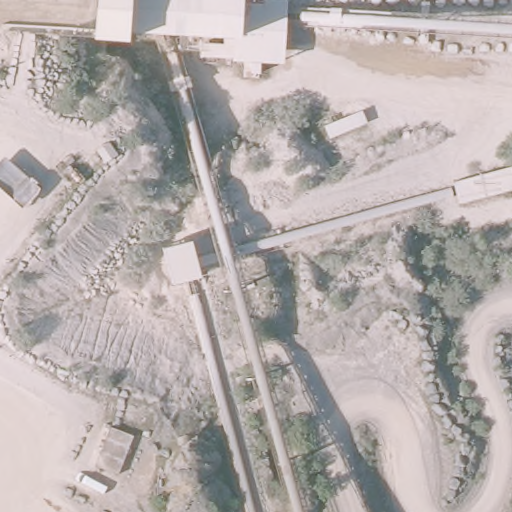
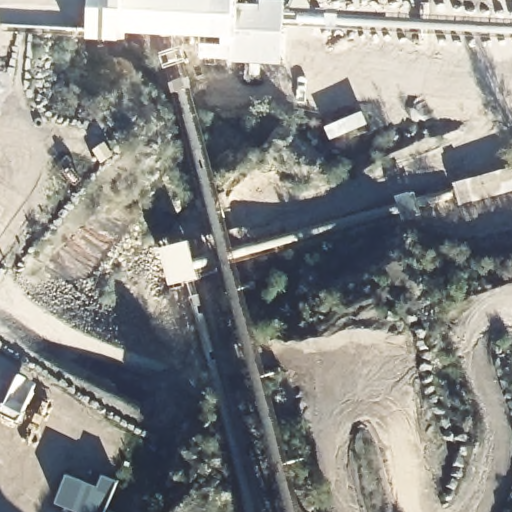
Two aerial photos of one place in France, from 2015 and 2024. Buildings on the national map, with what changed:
unchanged [(96,0),(287,0),(284,60),(201,61),(200,35),(94,32),(96,0)]
unchanged [(453,181),(512,163),(512,190),(461,202),(453,181)]
unchanged [(169,282),(161,248),(192,239),(198,278),(187,281),(169,282)]
new [(90,472),(115,482),(104,512),(78,512),(56,503),(67,475),(86,483),(90,472)]

